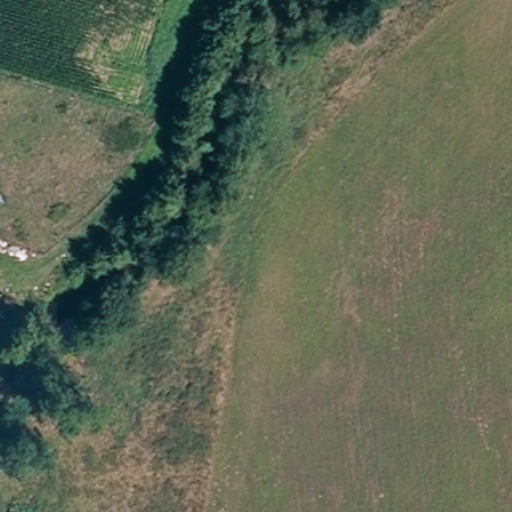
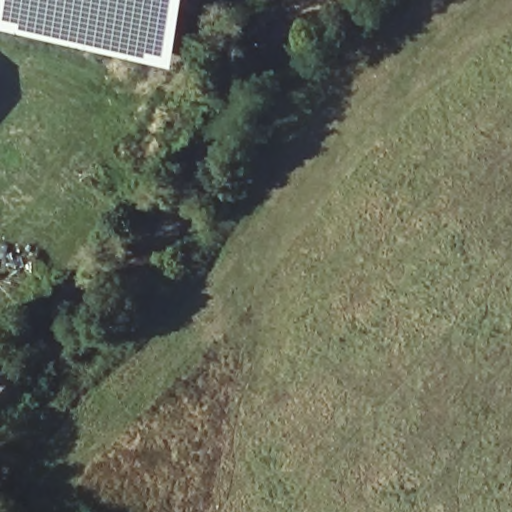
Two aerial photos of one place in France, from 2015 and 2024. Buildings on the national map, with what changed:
new [(175,69),(68,44),(0,30),(0,0),(191,0),(175,69)]

